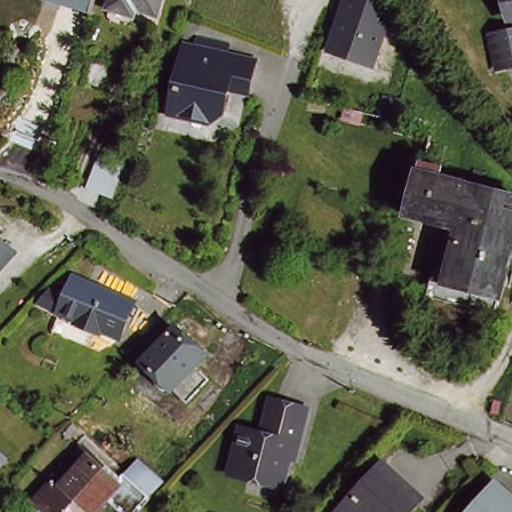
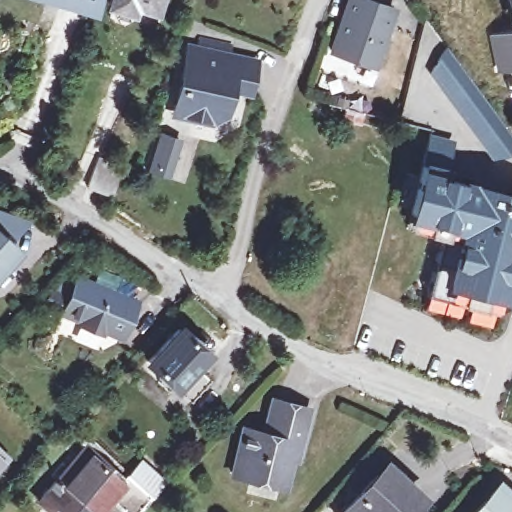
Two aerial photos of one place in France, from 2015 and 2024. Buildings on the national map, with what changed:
unchanged [(94,14),(47,1),(47,0),(98,0),(94,14)]
unchanged [(157,14),(135,6),(133,14),(112,7),(115,0),(161,0),(157,14)]
unchanged [(393,12),(373,68),(332,53),(350,0),(360,0),(393,12)]
unchanged [(504,68),(497,34),(512,31),(512,66),(504,68)]
unchanged [(212,122),(175,115),(190,48),(229,57),(257,63),(250,95),(231,91),(227,114),(212,122)]
new [(446,50),(512,137),(512,153),(496,160),(431,74),(446,50)]
unchanged [(385,96),(402,101),(397,123),(393,122),(380,118),(385,96)]
unchanged [(362,114),(358,125),(342,120),(345,109),(362,114)]
new [(158,136),(178,142),(168,176),(148,170),(158,136)]
unchanged [(125,166),(114,197),(89,188),(100,157),(125,166)]
unchanged [(451,165),(448,175),(512,192),(512,281),(505,311),(434,293),(453,217),(417,208),(401,204),(403,196),(420,200),(430,159),(451,165)]
unchanged [(0,277),(0,225),(12,235),(5,242),(1,247),(15,260),(0,277)]
unchanged [(137,301),(122,336),(63,310),(78,275),(137,301)]
unchanged [(212,372),(193,393),(179,380),(177,383),(168,384),(159,375),(160,366),(161,365),(149,354),(178,321),(200,341),(210,349),(200,359),(198,361),(212,372)]
unchanged [(310,404),(303,438),(297,437),(287,481),(236,470),(245,425),(269,430),(276,397),(310,404)]
unchanged [(50,475),(62,462),(67,466),(80,451),(68,439),(63,435),(75,423),(129,471),(131,468),(141,458),(165,479),(155,490),(135,512),(129,512),(108,494),(92,512),(53,512),(37,498),(45,490),(55,479),(50,475)]
unchanged [(0,466),(0,446),(10,455),(0,466)]
unchanged [(406,512),(345,512),(382,471),(415,501),(406,512)]
unchanged [(475,512),(502,482),(512,492),(512,512),(475,512)]

